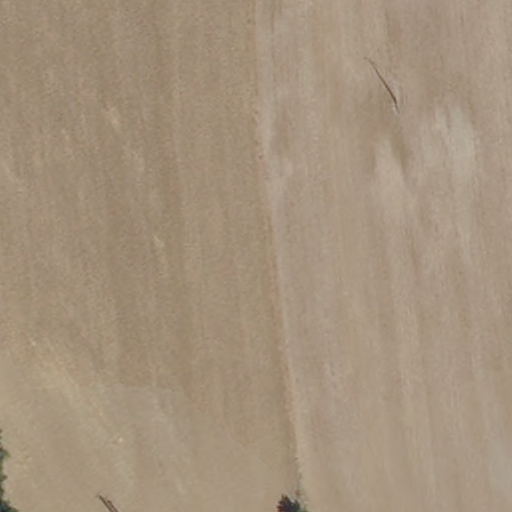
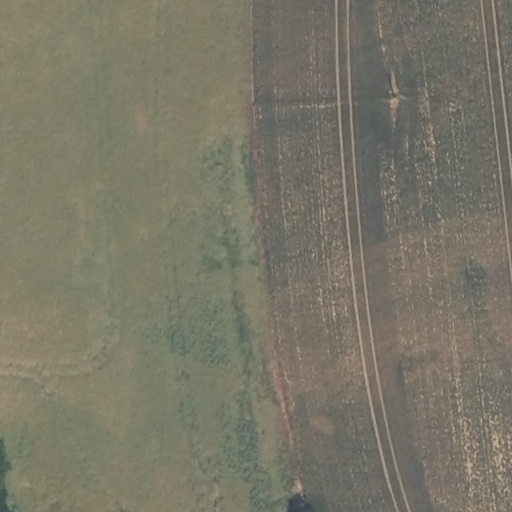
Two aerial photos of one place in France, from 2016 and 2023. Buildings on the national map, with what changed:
[]

